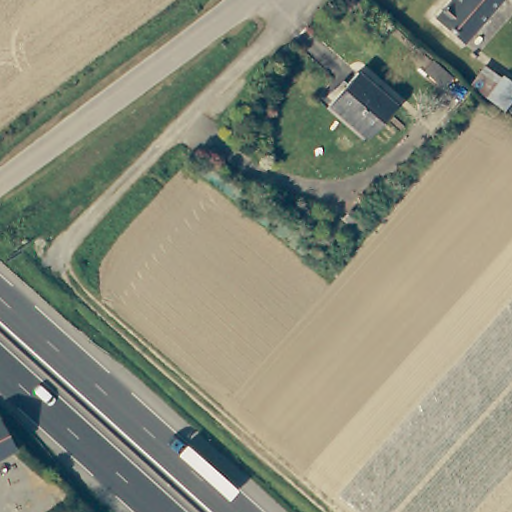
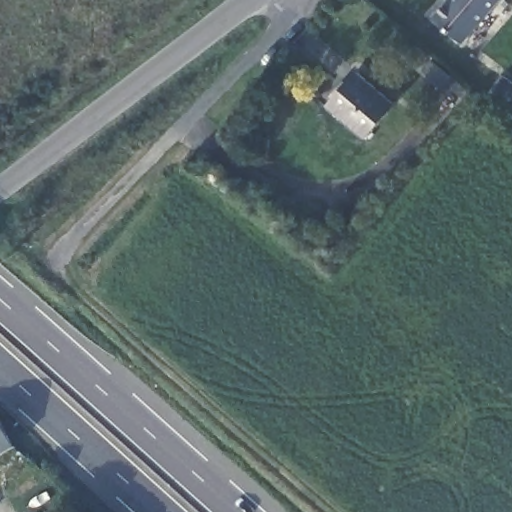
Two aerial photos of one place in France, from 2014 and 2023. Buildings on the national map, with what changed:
unchanged [(461,42),(431,19),(447,0),(493,0),(461,42)]
unchanged [(434,54),(465,78),(456,89),(425,63),(434,54)]
unchanged [(462,98),(485,63),(512,80),(512,121),(510,124),(462,98)]
unchanged [(361,72),(398,105),(371,137),(333,105),(361,72)]
unchanged [(20,439),(0,450),(0,421),(20,439)]

